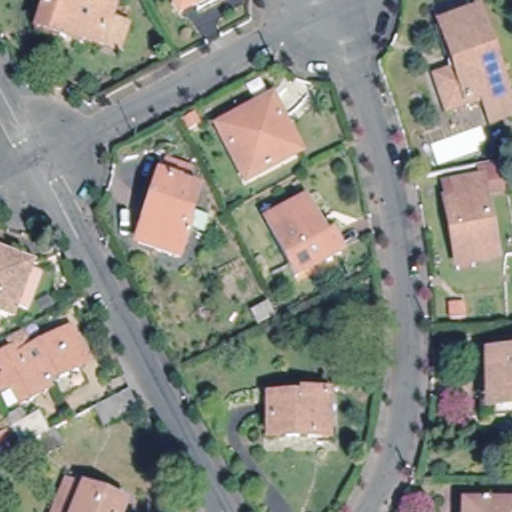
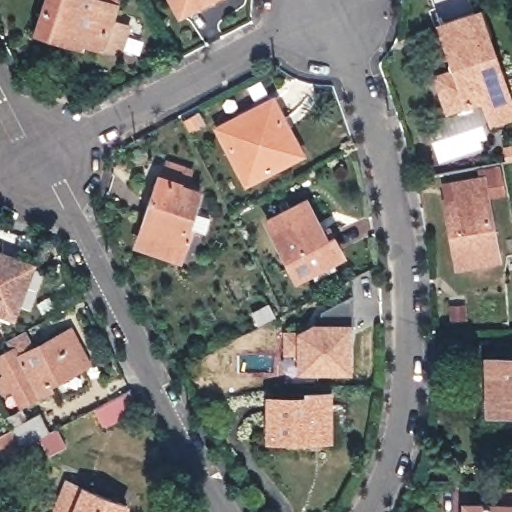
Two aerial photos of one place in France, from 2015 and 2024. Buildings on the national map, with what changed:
unchanged [(105,6),(100,21),(118,27),(109,54),(75,44),(74,47),(28,33),(39,0),(83,0),(105,6)]
unchanged [(182,6),(179,0),(195,0),(182,6)]
unchanged [(512,87),(512,109),(496,115),(487,90),(452,102),(440,71),(459,64),(442,19),(480,4),(512,87)]
unchanged [(228,124),(276,99),(287,120),(302,149),(295,152),(254,175),(228,124)]
unchanged [(484,195),(496,258),(457,266),(444,204),(446,204),(443,185),(480,177),(478,169),(496,165),(498,174),(501,192),(484,195)]
unchanged [(143,232),(142,232),(166,170),(191,179),(187,189),(200,194),(196,202),(197,202),(191,219),(208,225),(201,241),(188,236),(177,264),(137,249),(143,232)]
unchanged [(328,253),(335,265),(311,277),(305,265),(292,272),(264,218),(301,200),(315,226),(324,221),(329,230),(338,248),(328,253)]
unchanged [(0,315),(0,260),(21,268),(21,270),(33,275),(19,312),(7,307),(3,316),(0,315)]
new [(296,330),(313,320),(351,320),(352,372),(297,371),(296,354),(282,355),(282,329),(296,330)]
unchanged [(36,355),(74,335),(91,367),(52,388),(54,392),(23,408),(14,391),(5,396),(0,385),(0,383),(8,379),(0,363),(16,355),(10,342),(26,334),(36,355)]
unchanged [(512,401),(487,401),(486,355),(512,355),(512,401)]
unchanged [(142,408),(105,427),(94,407),(131,388),(142,408)]
unchanged [(322,436),(276,436),(275,400),(310,400),(310,396),(334,396),(334,430),(334,436),(322,436)]
unchanged [(72,451),(47,465),(37,445),(28,450),(20,455),(11,459),(0,438),(0,435),(15,426),(13,422),(27,415),(32,426),(48,418),(57,435),(62,432),(72,451)]
unchanged [(126,502),(122,512),(57,512),(69,480),(126,502)]
unchanged [(499,503),(499,490),(512,490),(512,512),(461,512),(460,504),(499,503)]

